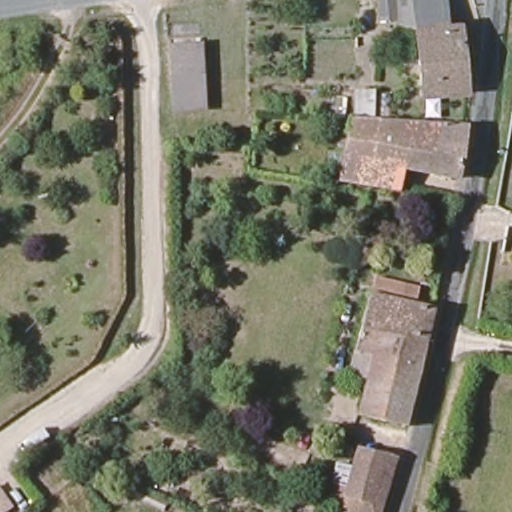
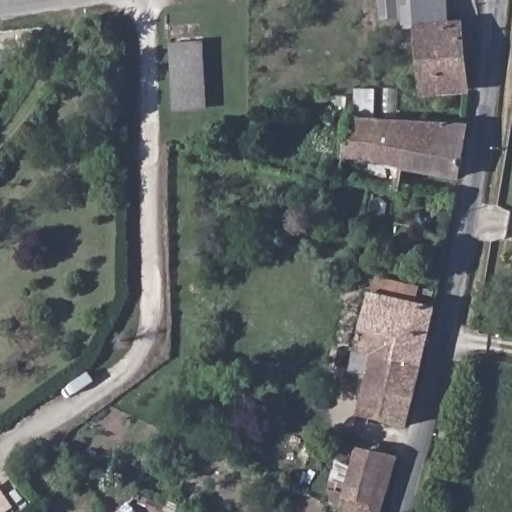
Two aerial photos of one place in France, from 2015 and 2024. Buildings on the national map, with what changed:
unchanged [(376,26),(373,0),(413,0),(415,23),(376,26)]
unchanged [(467,31),(471,63),(464,64),(466,94),(423,98),(415,23),(413,0),(445,0),(448,33),(467,31)]
unchanged [(174,124),(172,93),(170,40),(201,39),(203,91),(205,123),(174,124)]
unchanged [(426,128),(465,130),(461,149),(464,150),(458,183),(400,173),(397,195),(339,186),(344,154),(338,153),(341,136),(347,137),(349,124),(377,125),(426,128)]
unchanged [(405,428),(358,416),(367,376),(349,371),(369,295),(432,310),(405,428)]
unchanged [(341,506),(333,503),(335,497),(343,499),(344,495),(329,490),(335,465),(351,470),(356,454),(373,460),(384,454),(395,458),(379,512),(340,512),(341,506)]
unchanged [(11,509),(6,512),(0,512),(0,493),(11,509)]

